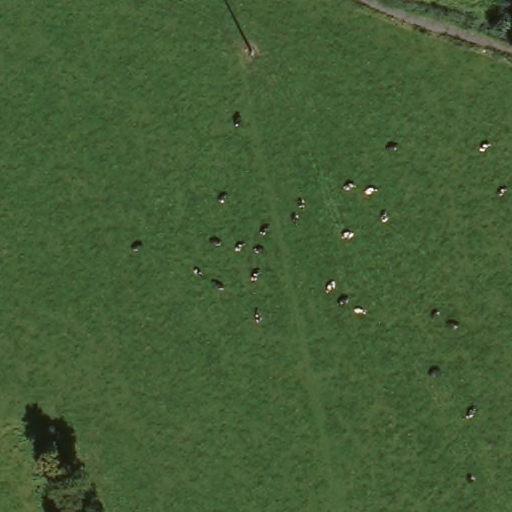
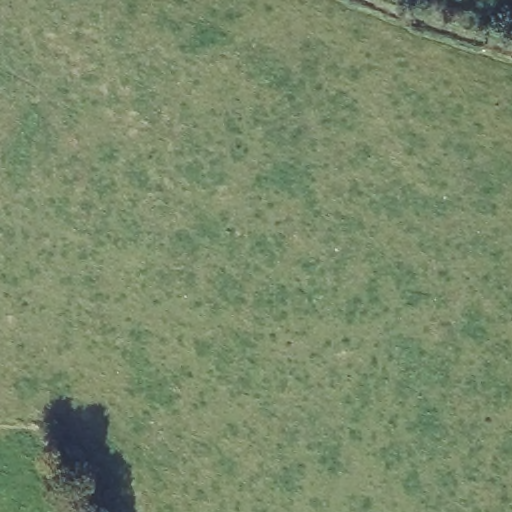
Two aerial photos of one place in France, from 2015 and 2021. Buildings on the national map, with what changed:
[]

